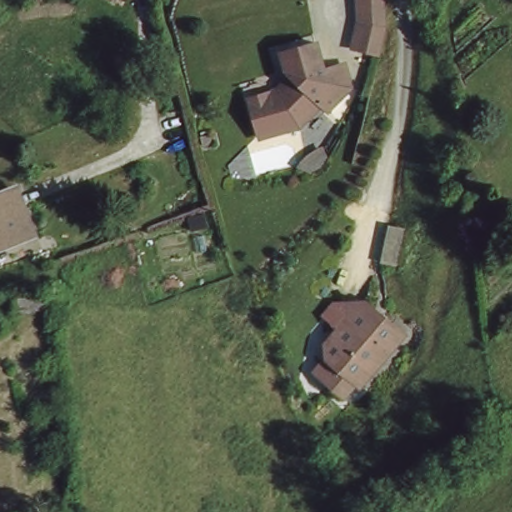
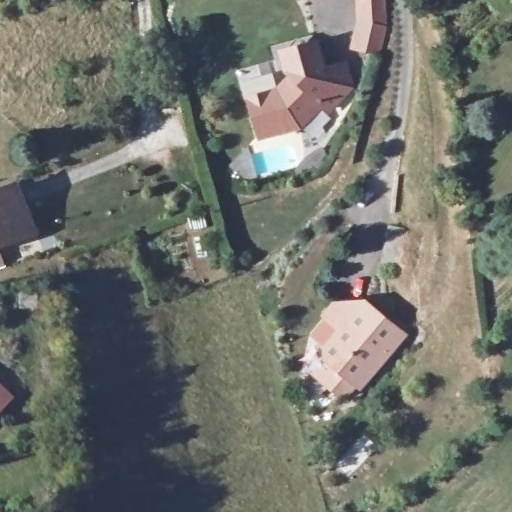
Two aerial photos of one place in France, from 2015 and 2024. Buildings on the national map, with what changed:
unchanged [(364,47),(342,31),(358,10),(359,0),(384,0),(380,25),(364,47)]
unchanged [(258,147),(243,106),(270,95),(277,100),(289,85),(287,80),(280,78),(271,56),(305,42),(316,69),(334,61),(345,82),(325,109),(317,106),(299,131),(258,147)]
unchanged [(0,242),(0,190),(13,184),(32,226),(0,242)]
unchanged [(377,220),(407,224),(403,260),(373,256),(377,220)]
unchanged [(373,306),(374,317),(381,312),(401,327),(353,398),(319,377),(328,360),(329,341),(340,325),(340,302),(358,297),(373,306)]
new [(0,412),(0,385),(13,397),(0,412)]

